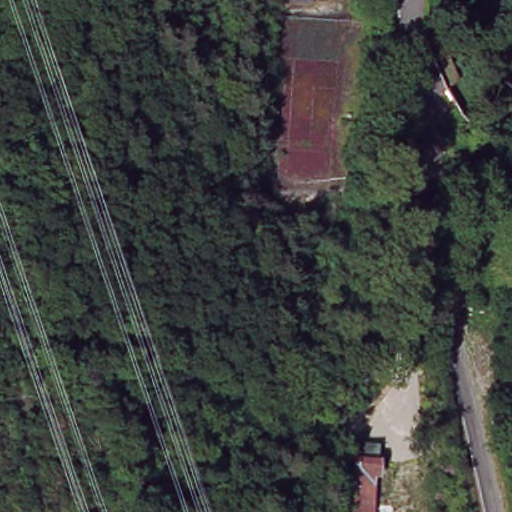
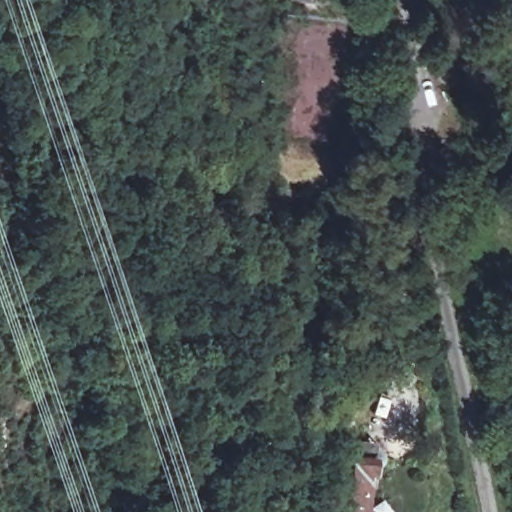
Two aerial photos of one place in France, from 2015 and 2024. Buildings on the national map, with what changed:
unchanged [(426,46),(445,39),(460,80),(477,105),(459,117),(444,90),(426,46)]
unchanged [(378,460),(377,472),(368,472),(364,510),(344,509),(348,458),(378,460)]

